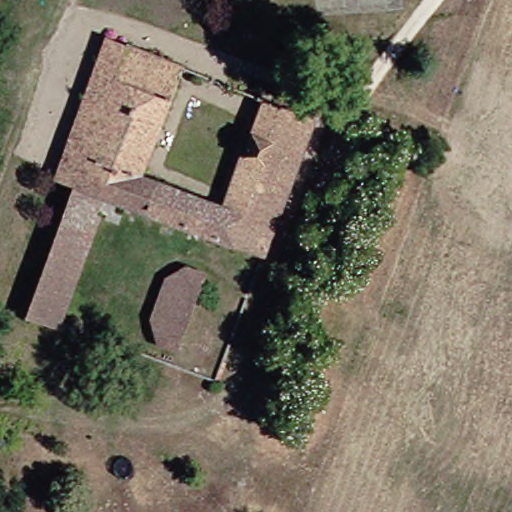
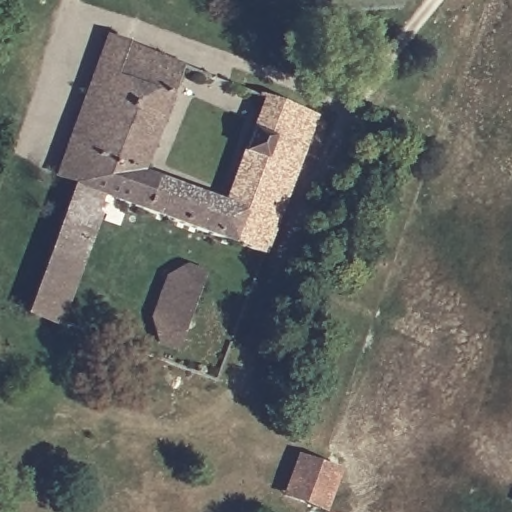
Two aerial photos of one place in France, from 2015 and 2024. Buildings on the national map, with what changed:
unchanged [(92,38),(114,45),(77,156),(61,185),(40,179),(92,38)]
unchanged [(169,65),(135,174),(77,156),(114,45),(169,65)]
unchanged [(135,174),(214,201),(229,151),(245,97),(306,114),(260,257),(91,195),(45,323),(18,315),(61,185),(77,156),(135,174)]
unchanged [(175,262),(197,273),(169,337),(140,325),(155,274),(175,262)]
new [(323,512),(280,496),(296,455),(340,471),(326,512),(323,512)]

